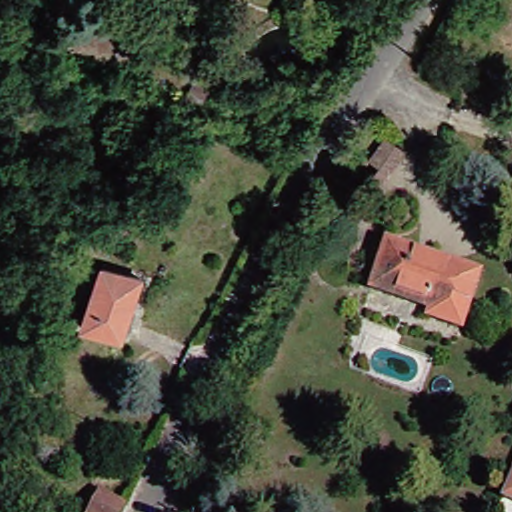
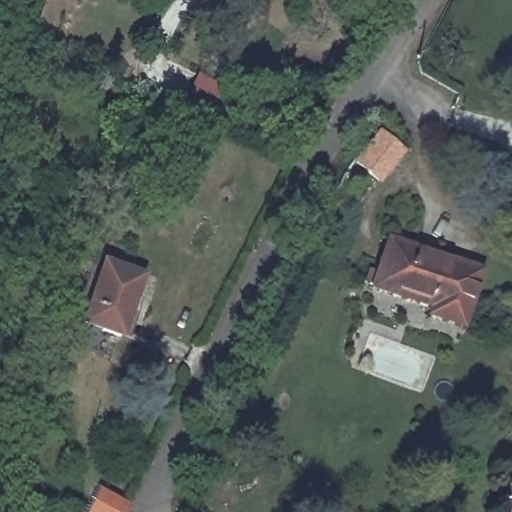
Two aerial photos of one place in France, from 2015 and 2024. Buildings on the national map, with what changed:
unchanged [(371,170),(377,160),(368,152),(383,133),(401,147),(379,177),(371,170)]
unchanged [(383,237),(407,245),(407,248),(447,262),(448,259),(477,268),(456,325),(422,313),(425,305),(367,285),(383,237)]
unchanged [(111,337),(72,324),(92,265),(130,278),(111,337)]
unchanged [(512,456),(512,502),(495,495),(512,456)]
unchanged [(90,512),(101,492),(126,505),(122,512),(90,512)]

